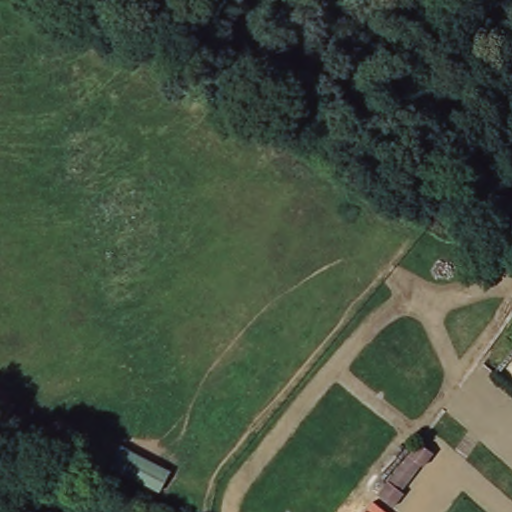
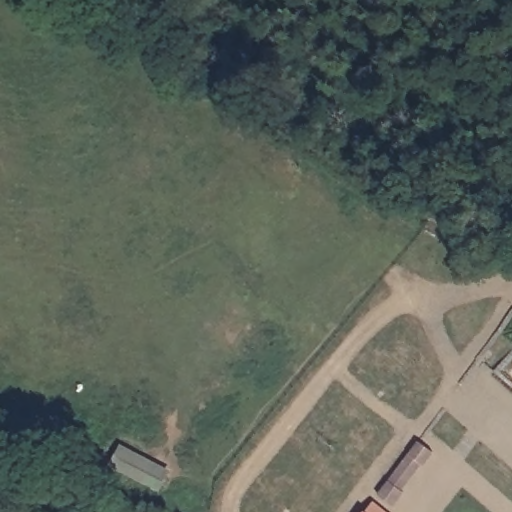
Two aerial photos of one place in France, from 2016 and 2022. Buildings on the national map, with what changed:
unchanged [(419,447),(432,457),(422,470),(420,470),(401,495),(403,497),(392,511),(378,500),(417,449),(418,447),(419,447)]
unchanged [(370,512),(373,507),(379,512),(370,512)]

